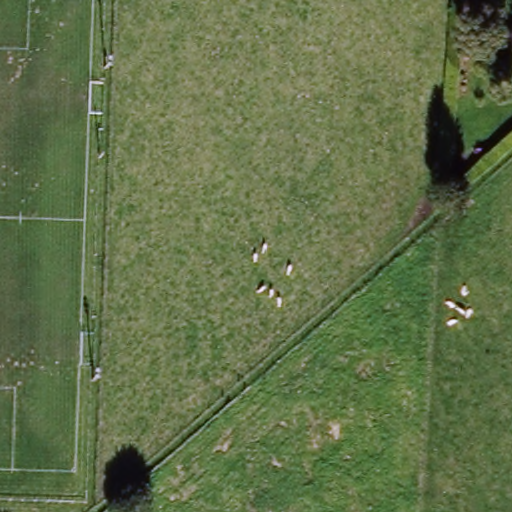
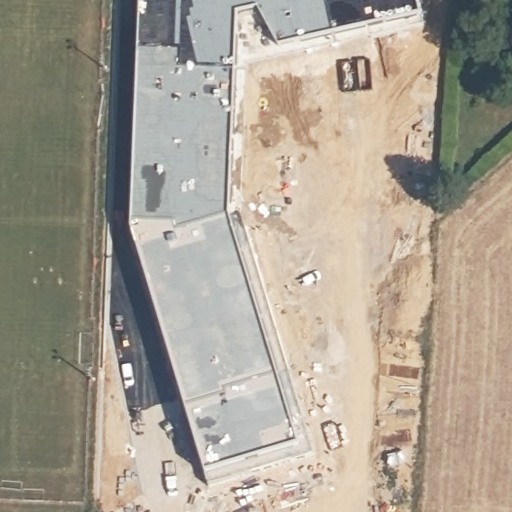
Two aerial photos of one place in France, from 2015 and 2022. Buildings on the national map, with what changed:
new [(129,223),(138,0),(417,0),(420,10),(276,40),(256,5),(235,10),(226,212),(295,442),(202,469),(129,223)]

